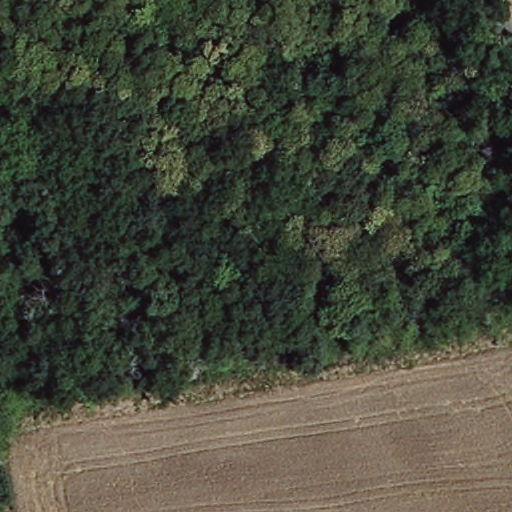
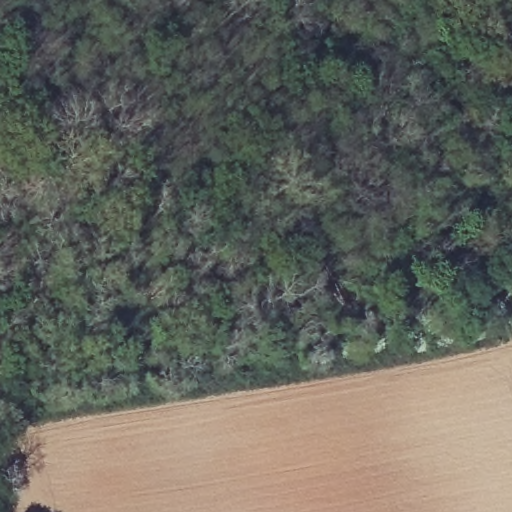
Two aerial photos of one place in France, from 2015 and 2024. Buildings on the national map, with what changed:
[]

